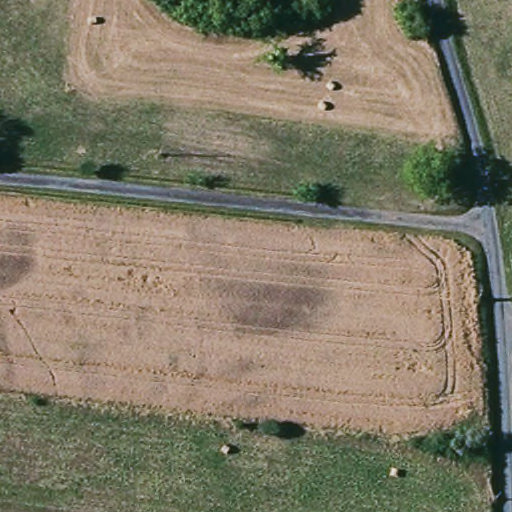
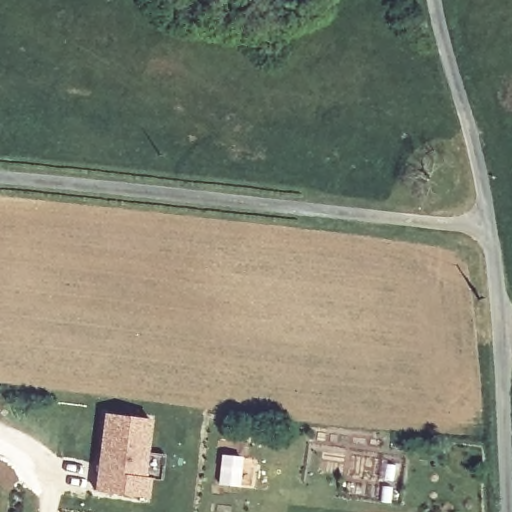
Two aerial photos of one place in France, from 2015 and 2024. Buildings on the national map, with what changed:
new [(107,412),(151,417),(147,450),(153,451),(148,496),(98,490),(107,412)]

